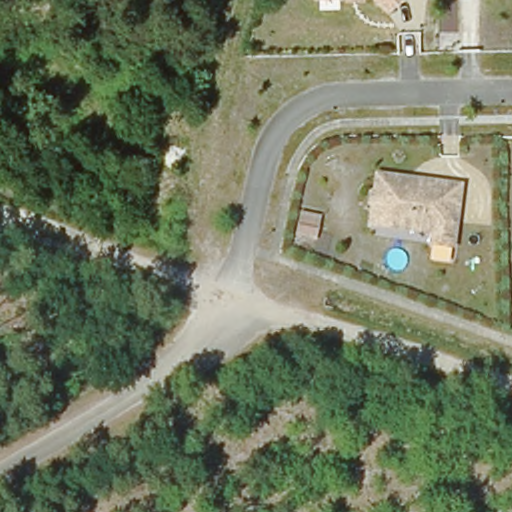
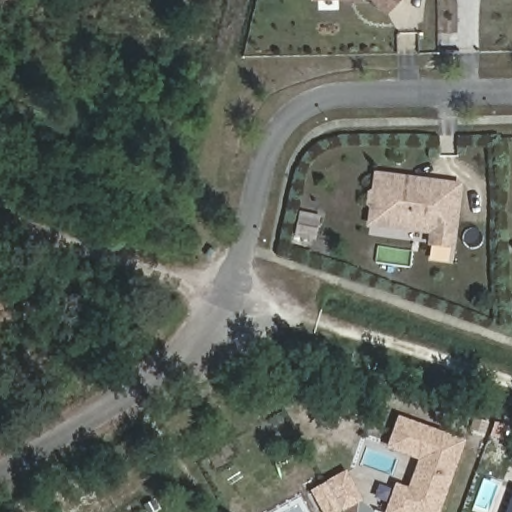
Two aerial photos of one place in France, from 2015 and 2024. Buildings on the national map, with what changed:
unchanged [(385,10),(375,0),(394,0),(385,10)]
unchanged [(422,189),(428,184),(437,185),(441,191),(460,193),(452,249),(431,247),(432,233),(372,225),(379,177),(407,180),(407,187),(422,189)]
unchanged [(315,236),(293,233),(297,212),(317,216),(315,236)]
new [(408,488),(418,460),(388,448),(398,416),(467,441),(441,512),(386,512),(396,484),(408,488)]
new [(322,512),(310,491),(347,471),(363,501),(342,512),(322,512)]
new [(512,512),(506,512),(512,497),(512,512)]

